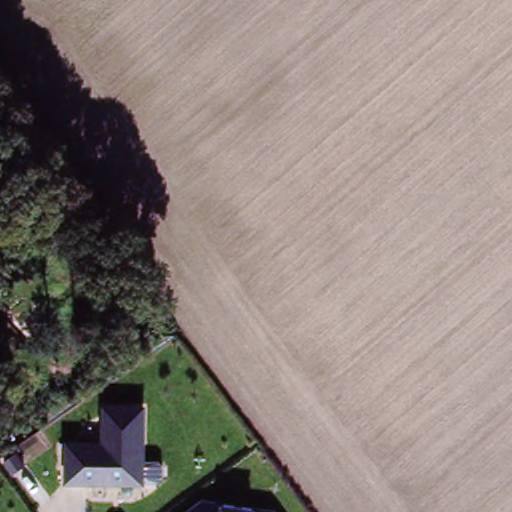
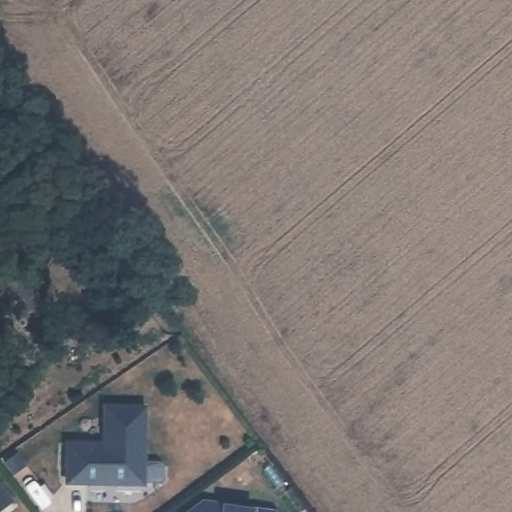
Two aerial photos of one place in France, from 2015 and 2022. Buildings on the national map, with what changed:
unchanged [(148,486),(64,488),(64,443),(105,442),(105,411),(145,410),(148,486)]
unchanged [(275,512),(188,512),(207,499),(275,512)]

